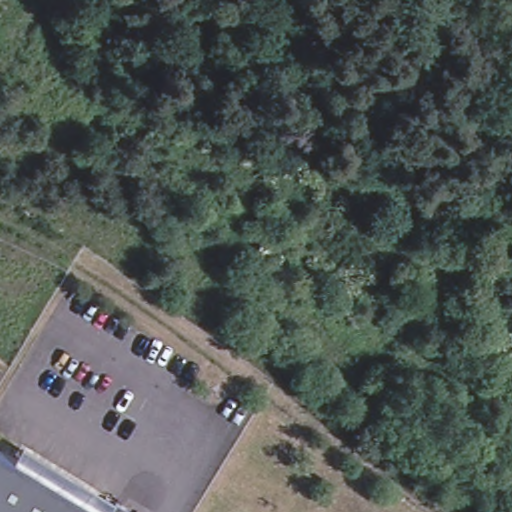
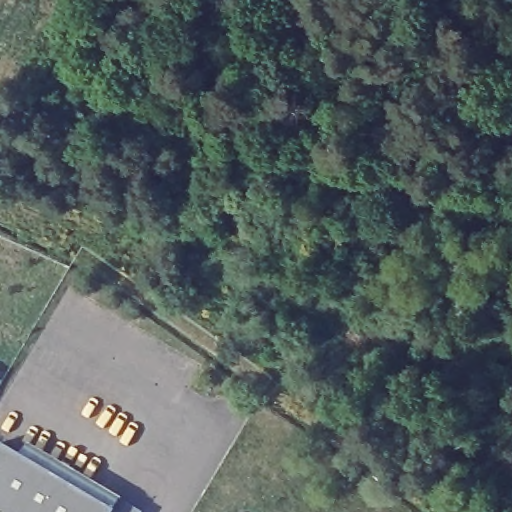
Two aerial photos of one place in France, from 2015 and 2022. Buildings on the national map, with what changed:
unchanged [(113,510),(112,512),(0,512),(0,443),(112,509),(113,510)]
unchanged [(144,509),(143,512),(112,512),(113,510),(112,509),(120,495),(144,509)]

